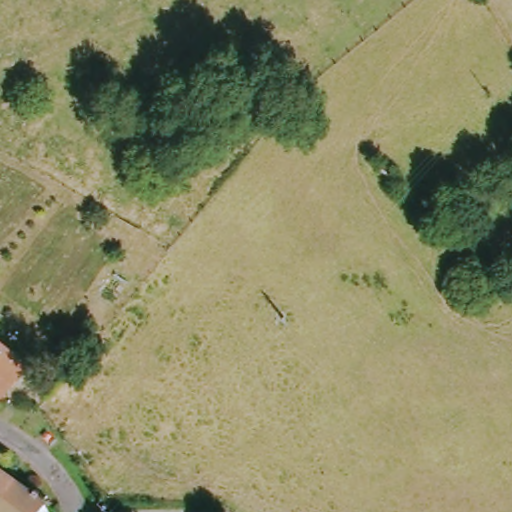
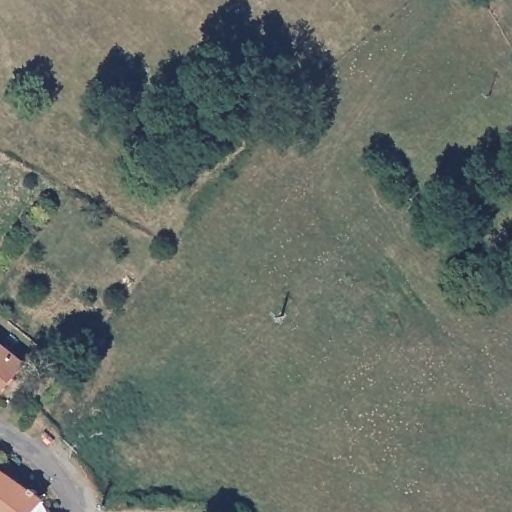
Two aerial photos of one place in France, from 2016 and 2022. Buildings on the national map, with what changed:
unchanged [(0,389),(0,354),(17,366),(7,381),(0,389)]
unchanged [(43,512),(0,512),(0,478),(43,512)]

